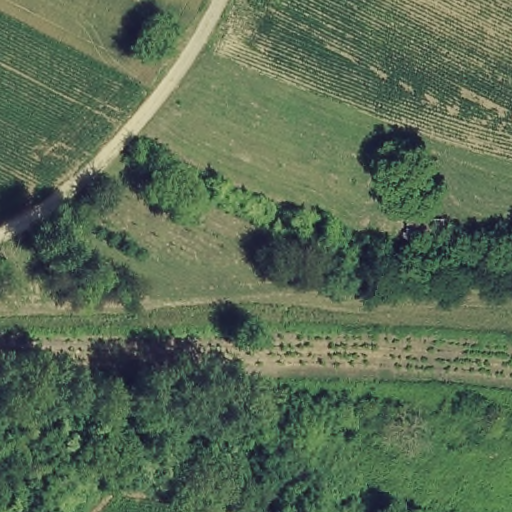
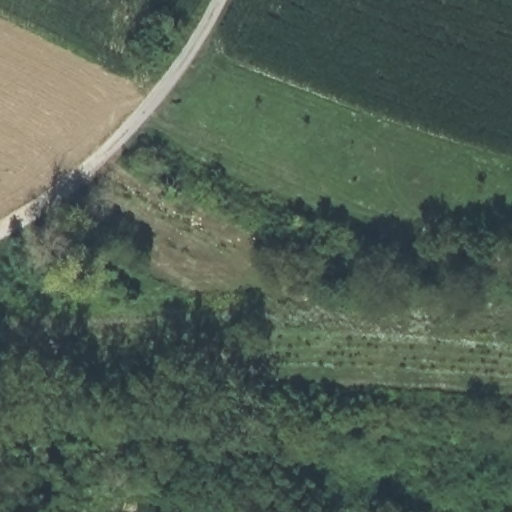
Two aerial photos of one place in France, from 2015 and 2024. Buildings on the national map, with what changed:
unchanged [(448,220),(446,243),(409,241),(410,218),(448,220)]

